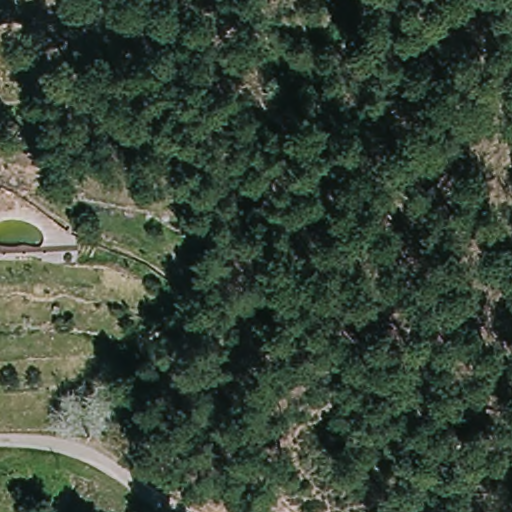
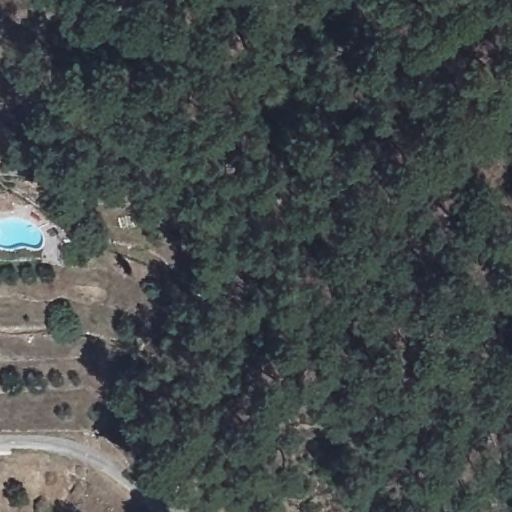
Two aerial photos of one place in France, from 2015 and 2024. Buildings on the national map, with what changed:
[]

